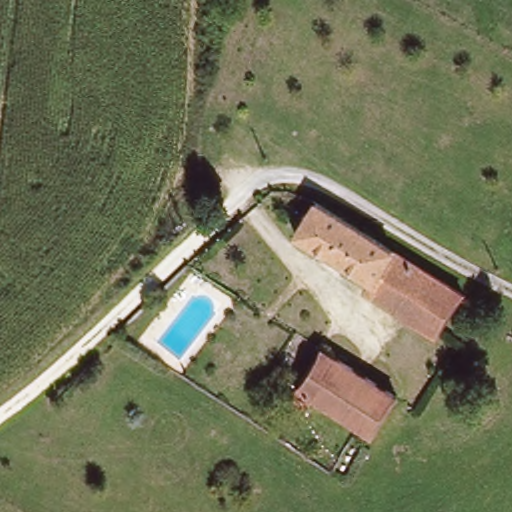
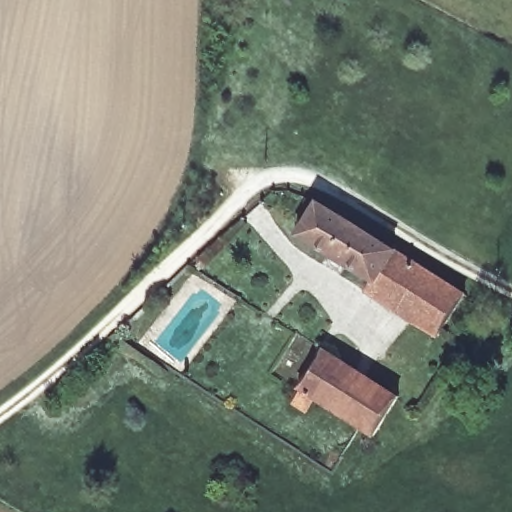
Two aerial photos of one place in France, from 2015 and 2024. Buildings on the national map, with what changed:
unchanged [(366,224),(463,286),(436,327),(365,282),(370,276),(301,231),(318,201),(366,224)]
unchanged [(294,393),(329,344),(400,390),(376,427),(314,387),(302,401),(294,393)]

